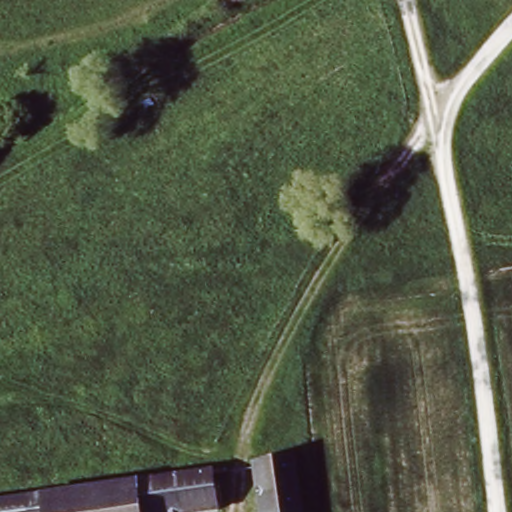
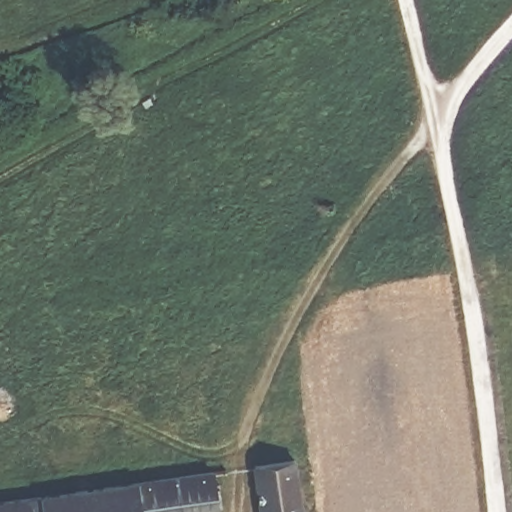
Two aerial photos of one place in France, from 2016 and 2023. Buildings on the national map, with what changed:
unchanged [(290,465),(296,512),(256,512),(250,471),(290,465)]
unchanged [(214,512),(0,512),(0,502),(212,472),(218,511),(214,512)]

